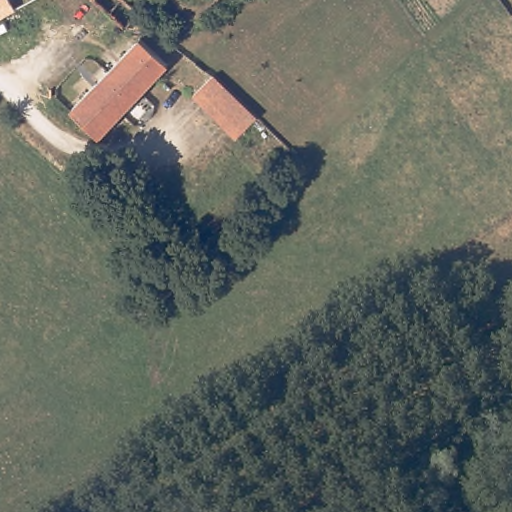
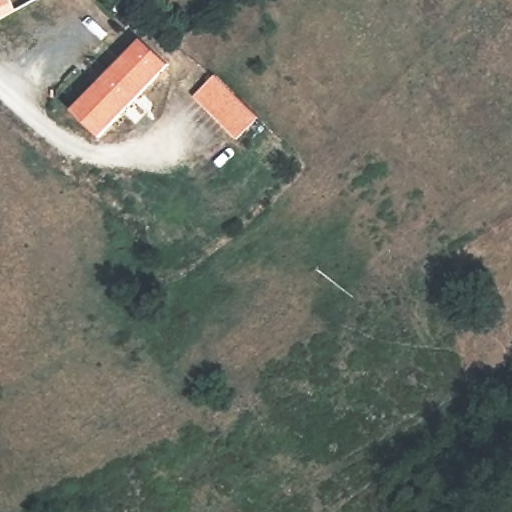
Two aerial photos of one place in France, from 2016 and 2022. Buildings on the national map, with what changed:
unchanged [(9,0),(17,16),(0,24),(0,0),(9,0)]
unchanged [(95,0),(126,0),(139,11),(123,27),(95,0)]
unchanged [(114,68),(143,41),(145,44),(166,66),(139,93),(114,68)]
unchanged [(98,134),(74,105),(114,68),(139,93),(98,134)]
unchanged [(260,114),(237,136),(194,95),(217,73),(228,82),(260,114)]
unchanged [(499,383),(492,387),(487,377),(493,374),(499,383)]

